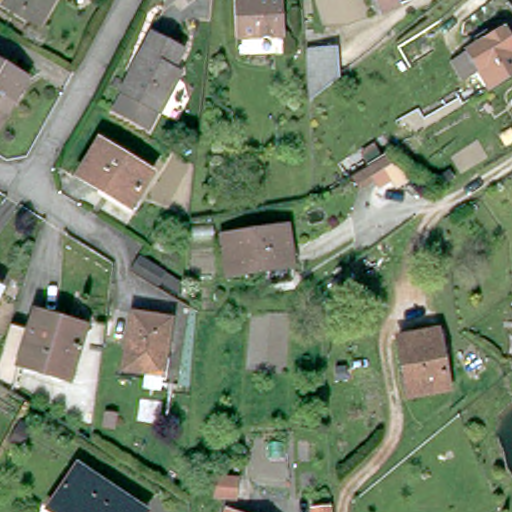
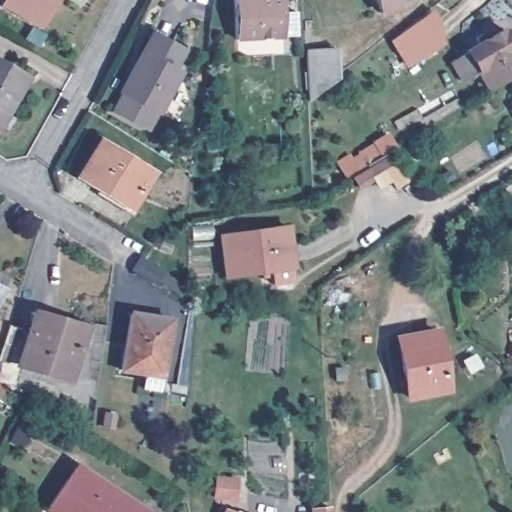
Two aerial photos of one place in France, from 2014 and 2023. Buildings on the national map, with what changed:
unchanged [(3,3),(5,0),(53,0),(38,24),(3,3)]
unchanged [(237,37),(236,0),(279,0),(281,35),(237,37)]
unchanged [(387,7),(384,0),(403,0),(403,1),(387,7)]
new [(436,11),(445,41),(409,61),(396,37),(436,11)]
unchanged [(462,40),(500,18),(512,36),(512,64),(486,80),(462,40)]
unchanged [(182,45),(172,63),(180,69),(148,126),(113,107),(123,90),(122,89),(153,30),(182,45)]
unchanged [(305,51),(338,49),(340,79),(308,102),(305,51)]
unchanged [(23,77),(12,97),(9,95),(0,111),(0,65),(23,77)]
unchanged [(153,173),(130,209),(78,179),(100,142),(153,173)]
unchanged [(286,224),(291,262),(228,270),(223,231),(286,224)]
unchanged [(140,255),(165,270),(157,282),(132,267),(140,255)]
unchanged [(40,325),(45,308),(94,324),(78,373),(28,360),(23,377),(3,371),(20,318),(40,325)]
unchanged [(148,383),(150,368),(130,364),(130,355),(137,308),(176,315),(167,371),(165,386),(148,383)]
unchanged [(438,331),(450,388),(410,397),(398,338),(438,331)]
unchanged [(140,507),(136,512),(56,512),(44,504),(73,462),(140,507)]
unchanged [(239,512),(224,512),(225,507),(239,512)]
unchanged [(312,510),(333,508),(333,512),(312,512),(312,510)]

